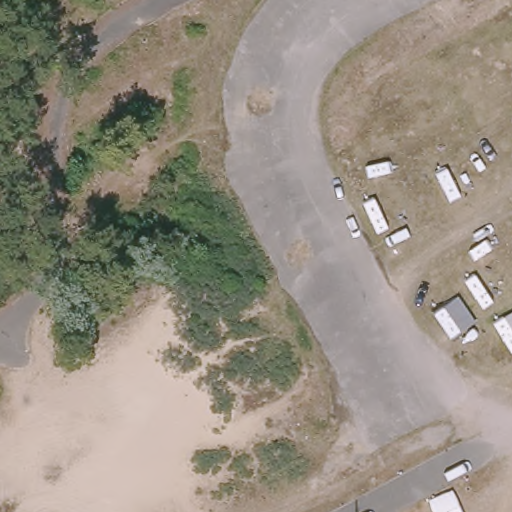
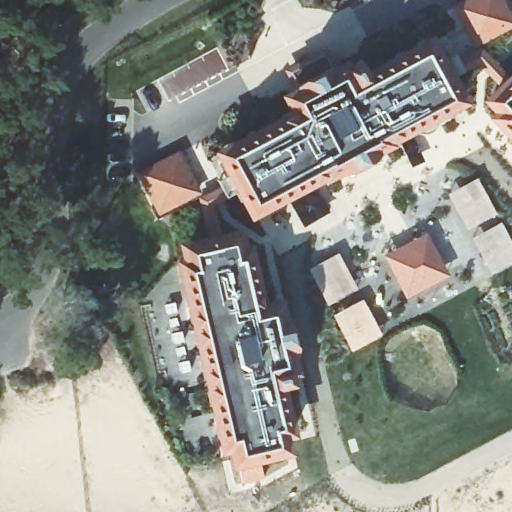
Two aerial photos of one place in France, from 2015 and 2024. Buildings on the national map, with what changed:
new [(512,15),(512,27),(474,49),(452,8),(467,0),(504,0),(512,15)]
new [(299,114),(290,98),(310,88),(310,81),(312,75),(319,73),(327,78),(362,61),(370,76),(432,42),(461,100),(436,113),(440,122),(438,126),(435,130),(429,134),(423,136),(415,134),(412,128),(385,142),(254,211),(224,153),(299,114)]
new [(497,117),(505,111),(492,100),(512,81),(512,133),(497,117)]
new [(202,195),(159,218),(137,175),(177,152),(202,195)]
new [(237,441),(229,443),(187,262),(193,260),(190,244),(240,232),(244,248),(250,247),(264,306),(280,302),(295,366),(287,368),(291,383),(282,385),(292,428),(285,430),(290,455),(263,461),(267,476),(245,481),(237,441)]
new [(405,299),(383,255),(424,234),(446,278),(405,299)]

